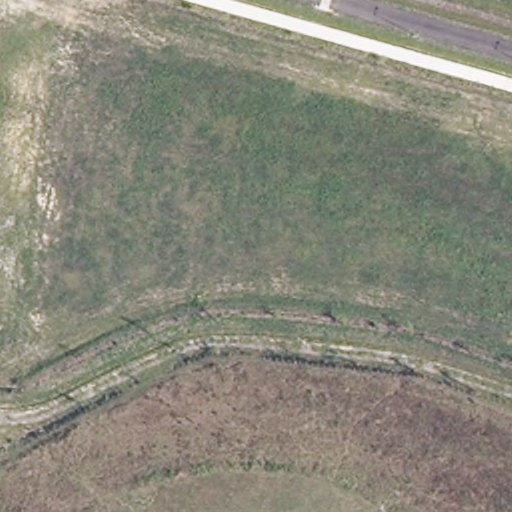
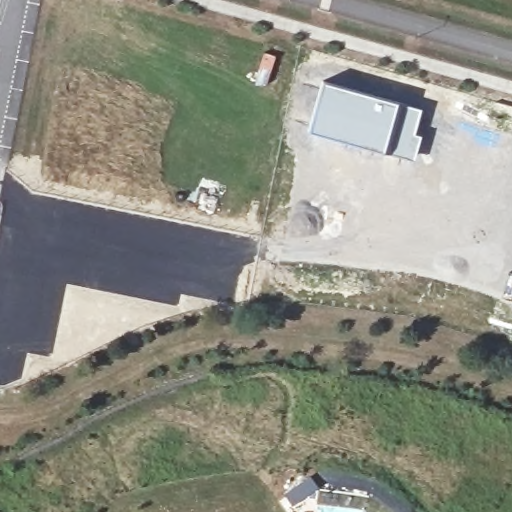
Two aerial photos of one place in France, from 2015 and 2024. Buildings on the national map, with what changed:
new [(322,80),(421,109),(415,133),(420,135),(413,160),(307,131),(322,80)]

